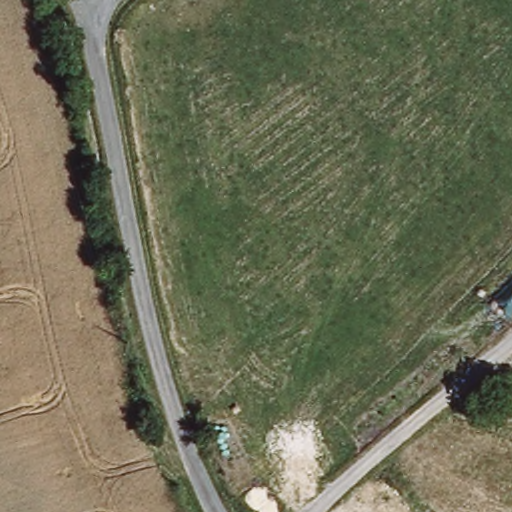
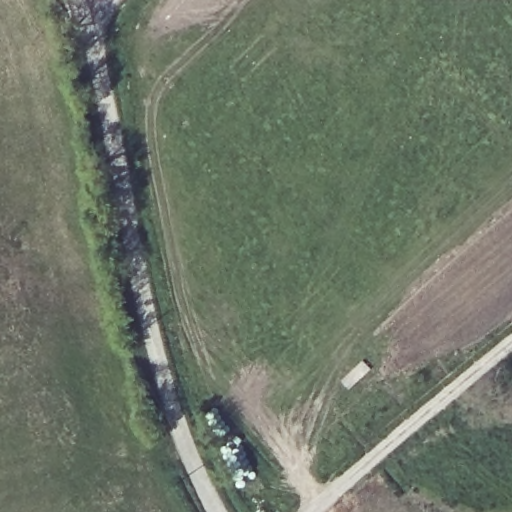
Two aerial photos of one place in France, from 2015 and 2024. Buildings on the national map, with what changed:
[]

